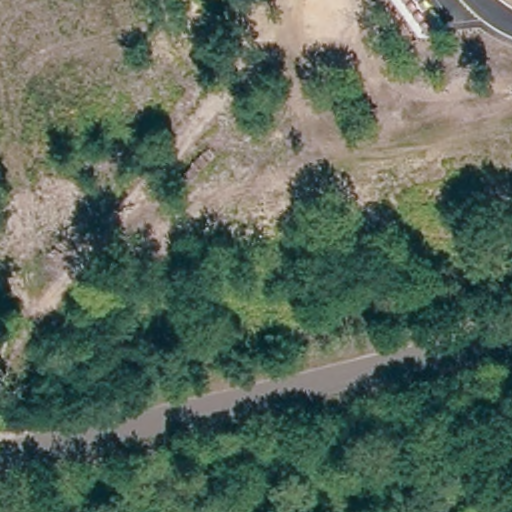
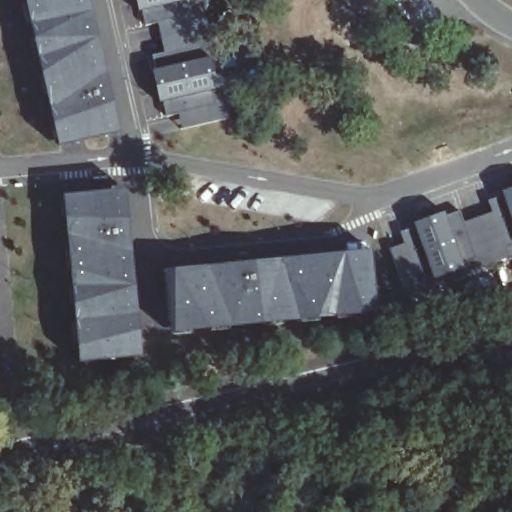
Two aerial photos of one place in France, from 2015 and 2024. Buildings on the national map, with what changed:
new [(120,131),(59,146),(24,0),(88,0),(120,131)]
new [(216,62),(213,63),(218,89),(222,88),(227,118),(180,128),(176,112),(166,114),(164,101),(159,102),(151,71),(155,69),(151,55),(164,52),(158,21),(145,23),(143,10),(138,10),(136,0),(202,0),(216,62)]
new [(125,189),(140,356),(79,362),(62,195),(125,189)]
new [(406,293),(390,249),(404,244),(401,234),(417,231),(415,224),(445,213),(446,218),(460,213),(463,223),(493,213),(490,203),(505,201),(503,193),(512,190),(512,253),(406,293)]
new [(372,251),(378,312),(167,334),(163,270),(372,251)]

